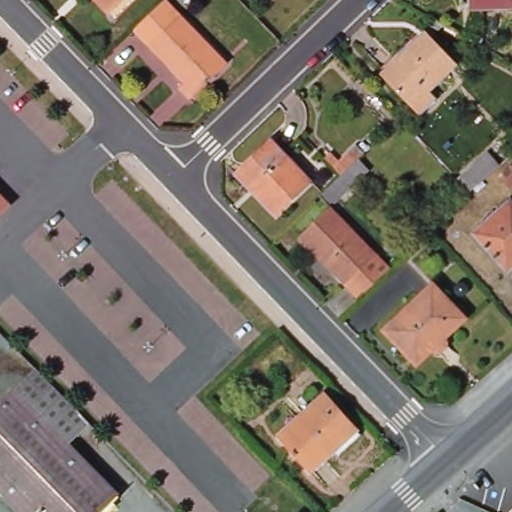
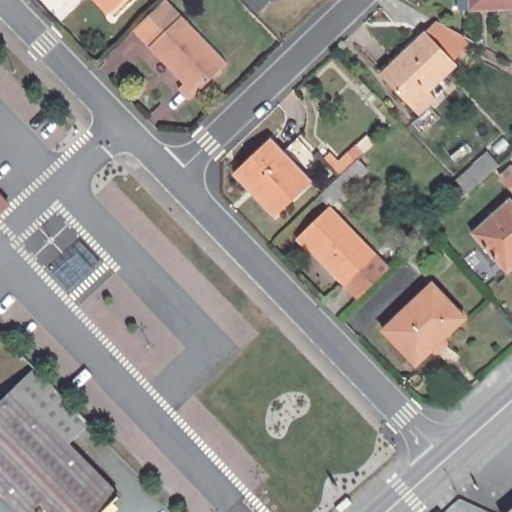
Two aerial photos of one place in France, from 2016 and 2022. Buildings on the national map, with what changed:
unchanged [(110,10),(99,0),(121,0),(110,10)]
unchanged [(160,0),(172,0),(229,61),(192,96),(181,84),(185,80),(134,26),(160,0)]
unchanged [(472,0),(512,0),(512,4),(472,5),(472,0)]
unchanged [(457,60),(430,86),(438,95),(421,111),(382,70),(427,27),(457,60)]
unchanged [(313,179),(278,212),(255,188),(260,184),(241,162),(271,135),(313,179)]
unchanged [(331,207),(321,196),(341,176),(334,170),(326,160),(332,155),(341,164),(358,147),(365,153),(358,160),(368,170),(331,207)]
unchanged [(489,147),(502,160),(469,190),(456,177),(489,147)]
unchanged [(512,164),(512,183),(502,172),(512,164)]
unchanged [(472,230),(512,195),(512,266),(508,270),(472,230)]
unchanged [(10,206),(0,216),(0,196),(10,206)]
unchanged [(297,239),(331,207),(391,269),(358,300),(312,250),(309,251),(297,239)]
unchanged [(467,310),(448,328),(449,338),(441,345),(439,345),(436,344),(433,342),(417,356),(385,320),(433,274),(467,310)]
unchanged [(35,363),(79,407),(109,442),(92,459),(126,494),(106,512),(21,512),(0,492),(0,397),(35,363)]
demolished [(325,392),(360,430),(312,473),(277,435),(325,392)]
unchanged [(512,512),(507,512),(512,508),(512,512)]

